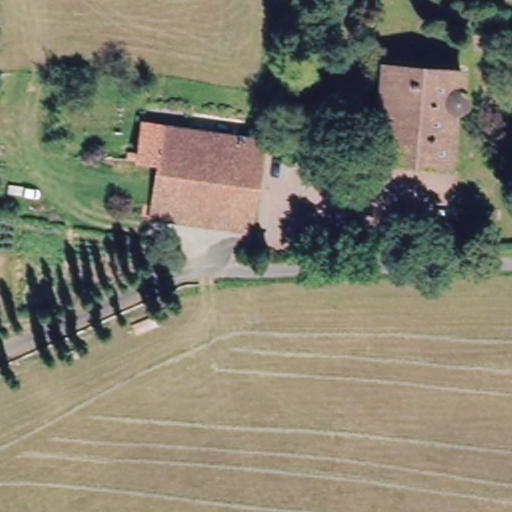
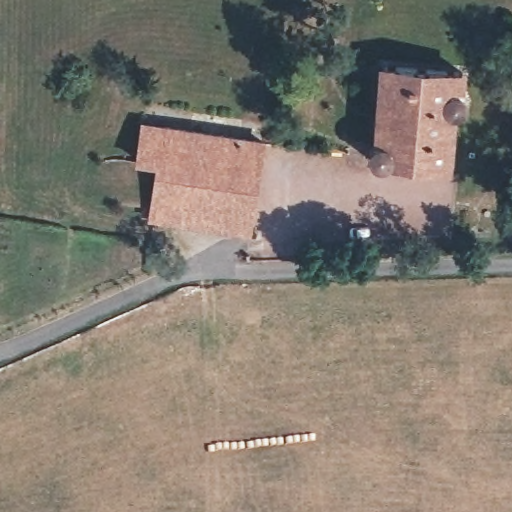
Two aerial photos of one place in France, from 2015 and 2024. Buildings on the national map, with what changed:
unchanged [(367,144),(378,142),(383,64),(463,71),(467,100),(463,106),(457,109),(450,109),(449,109),(442,162),(389,159),(383,167),(377,170),(370,170),(364,167),(361,161),(360,155),(367,144)]
unchanged [(252,233),(152,223),(159,170),(138,167),(141,141),(142,132),(164,133),(260,144),(252,233)]

